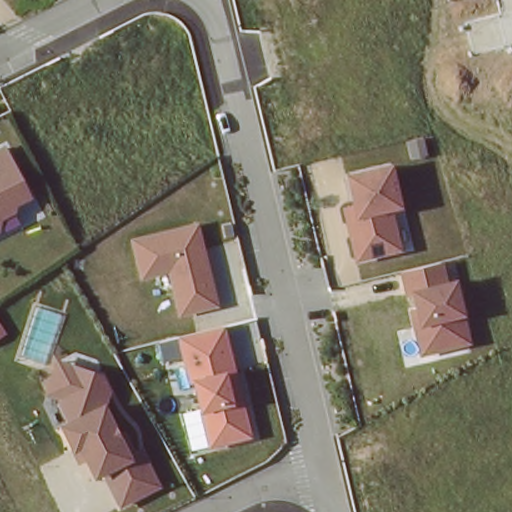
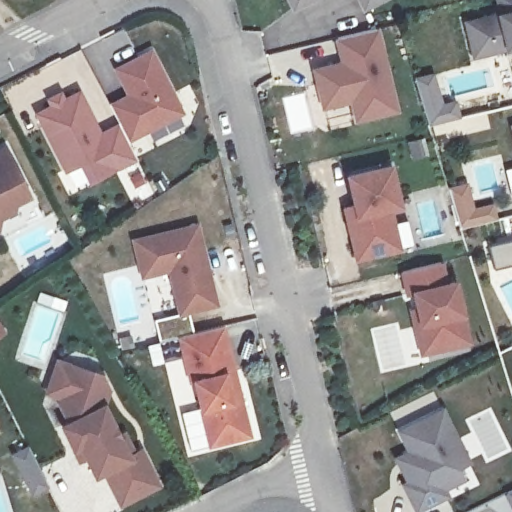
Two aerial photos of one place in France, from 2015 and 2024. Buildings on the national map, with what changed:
new [(308,1),(292,9),(288,0),(309,0),(308,1)]
new [(363,8),(359,0),(379,0),(363,8)]
new [(497,0),(512,0),(512,46),(473,56),(465,22),(500,13),(497,0)]
new [(341,64),(335,38),(374,29),(393,110),(355,120),(350,100),(321,106),(313,70),(341,64)]
new [(130,101),(113,69),(150,51),(181,112),(126,140),(118,124),(111,111),(130,101)]
new [(430,126),(414,78),(435,73),(443,105),(456,101),(460,118),(430,126)]
new [(47,99),(58,94),(61,100),(77,92),(98,134),(118,124),(126,140),(135,157),(88,181),(78,162),(64,170),(35,114),(50,106),(47,99)]
new [(512,134),(510,126),(512,125),(512,134)]
unchanged [(30,197),(15,204),(16,212),(0,220),(0,145),(4,144),(30,197)]
unchanged [(403,207),(393,208),(402,250),(355,262),(341,207),(352,203),(346,176),(393,164),(403,207)]
new [(460,230),(447,187),(467,184),(475,207),(492,204),(497,220),(460,230)]
unchanged [(195,222),(216,308),(176,317),(166,275),(137,281),(128,237),(195,222)]
new [(487,245),(512,238),(512,264),(493,270),(487,245)]
unchanged [(448,281),(457,279),(463,307),(470,344),(422,356),(417,323),(411,292),(404,293),(400,270),(444,260),(448,281)]
new [(5,335),(0,338),(0,326),(5,335)]
unchanged [(253,438),(209,449),(200,412),(191,380),(179,338),(225,326),(253,438)]
unchanged [(101,372),(111,388),(106,403),(121,437),(128,432),(136,447),(142,444),(163,486),(120,508),(104,474),(93,478),(81,452),(74,455),(60,425),(64,422),(57,398),(45,393),(56,357),(101,372)]
new [(470,462),(458,469),(465,481),(445,490),(448,496),(416,512),(413,512),(398,483),(402,481),(390,457),(405,451),(395,432),(441,407),(470,462)]
new [(33,495),(25,480),(15,457),(30,450),(40,472),(48,487),(33,495)]
new [(512,493),(512,508),(506,496),(512,493)]

